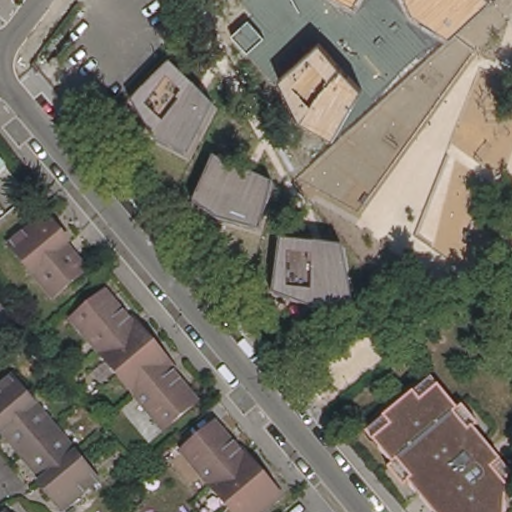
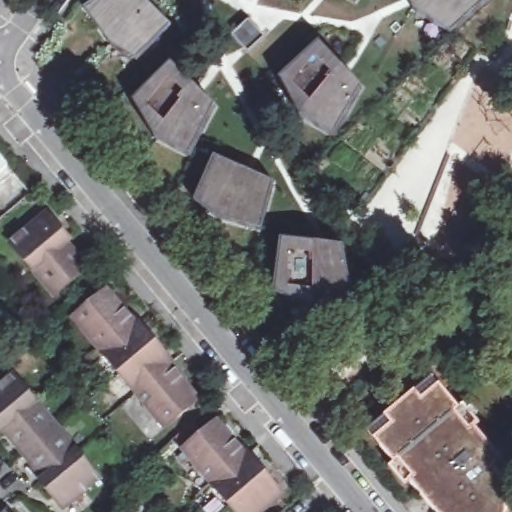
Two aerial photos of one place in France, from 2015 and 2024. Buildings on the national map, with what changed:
new [(98,0),(145,0),(172,25),(137,61),(107,40),(85,10),(98,0)]
unchanged [(355,7),(338,0),(359,0),(355,7)]
unchanged [(450,36),(415,16),(407,0),(489,0),(450,36)]
unchanged [(320,44),(360,87),(333,138),(300,120),(280,80),(320,44)]
unchanged [(171,62),(217,107),(188,159),(153,140),(132,99),(171,62)]
unchanged [(8,166),(0,173),(0,156),(8,166)]
unchanged [(215,157),(272,181),(258,232),(220,223),(195,202),(215,157)]
unchanged [(47,227),(50,231),(52,228),(57,224),(71,241),(68,243),(69,245),(72,248),(88,268),(56,295),(12,243),(40,219),(47,227)]
unchanged [(281,243),(348,249),(353,299),(310,307),(275,292),(281,243)]
unchanged [(113,297),(117,301),(132,318),(135,316),(136,318),(139,322),(140,323),(143,327),(147,332),(151,336),(161,348),(165,352),(169,357),(172,361),(173,363),(176,366),(178,368),(175,370),(190,388),(193,392),(200,400),(166,427),(75,318),(107,290),(113,297)]
unchanged [(100,478),(72,502),(65,508),(57,500),(55,497),(42,481),(45,478),(43,476),(40,472),(10,435),(7,431),(5,429),(2,432),(0,430),(0,387),(15,375),(100,478)]
unchanged [(430,379),(510,473),(507,512),(435,512),(366,432),(430,379)]
unchanged [(218,429),(222,434),(236,450),(240,448),(241,450),(244,453),(245,455),(248,458),(252,464),(256,468),(266,480),(270,484),(274,489),(277,493),(278,494),(257,512),(232,512),(180,449),(212,422),(218,429)]

